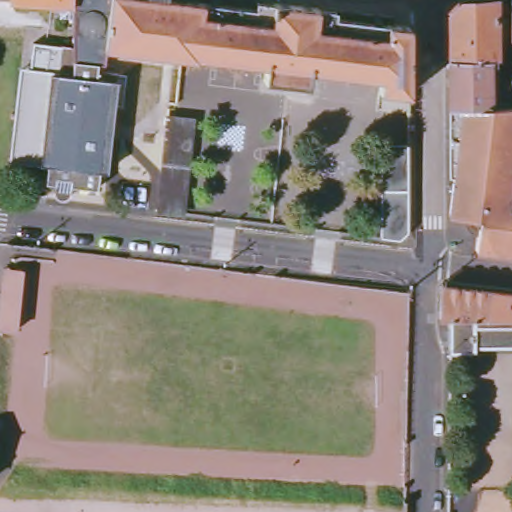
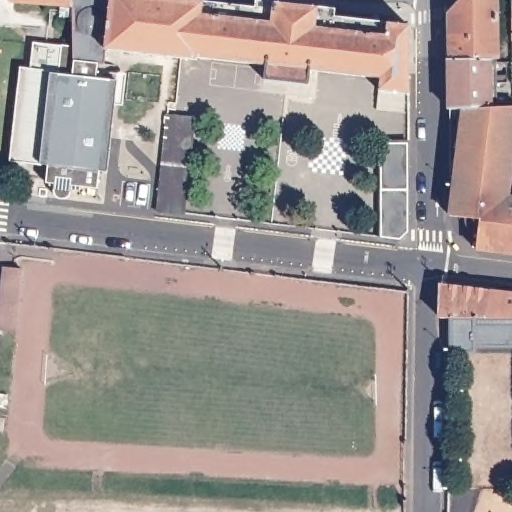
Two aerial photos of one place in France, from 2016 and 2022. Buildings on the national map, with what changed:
unchanged [(57,18),(57,10),(57,5),(13,0),(200,0),(200,6),(275,9),(275,0),(317,0),(317,14),(387,22),(387,11),(411,12),(410,94),(380,91),(380,79),(310,70),(309,84),(263,80),(265,65),(105,50),(103,66),(97,65),(95,78),(117,80),(108,172),(100,172),(98,190),(80,188),(79,192),(75,190),(72,48),(72,19),(57,18)]
unchanged [(450,109),(450,59),(450,15),(463,1),(488,0),(497,0),(498,59),(498,83),(512,84),(512,107),(463,109),(450,109)]
unchanged [(70,193),(70,195),(67,196),(65,196),(62,196),(57,195),(55,191),(54,189),(53,188),(53,185),(47,185),(48,167),(40,166),(20,164),(12,163),(23,71),(31,72),(33,46),(61,48),(62,47),(72,48),(75,190),(72,191),(70,193)]
unchanged [(449,215),(450,205),(450,202),(454,176),(463,109),(512,107),(512,155),(507,195),(512,196),(512,254),(476,249),(478,230),(475,230),(470,222),(470,217),(451,215),(449,215)]
unchanged [(157,211),(165,116),(191,117),(182,213),(157,211)]
unchanged [(410,230),(398,239),(380,237),(381,141),(410,144),(410,230)]
unchanged [(0,331),(0,318),(4,283),(6,268),(22,270),(20,285),(15,333),(0,331)]
unchanged [(440,313),(441,280),(488,287),(488,314),(450,313),(440,313)]
unchanged [(488,287),(512,290),(512,314),(488,314),(488,287)]
unchanged [(488,314),(512,314),(512,344),(475,344),(475,349),(450,349),(450,313),(488,314)]

